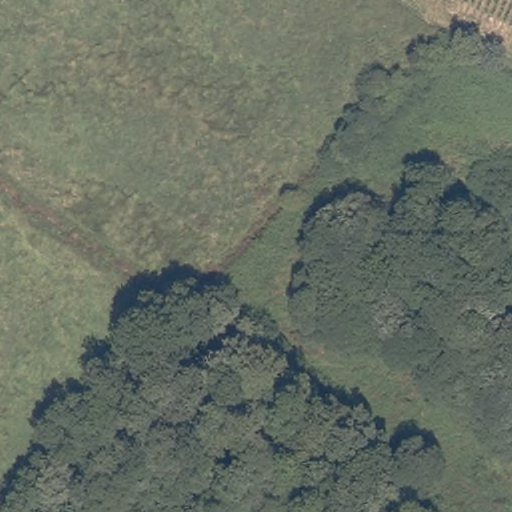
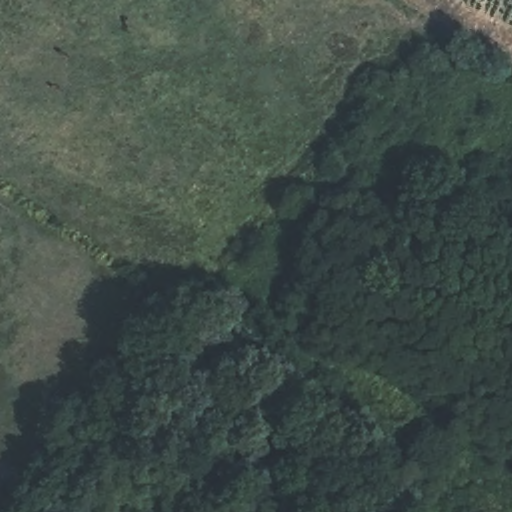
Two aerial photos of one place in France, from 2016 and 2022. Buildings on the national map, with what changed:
[]

